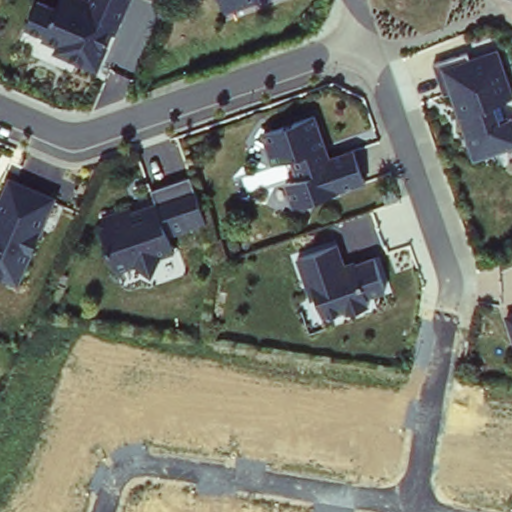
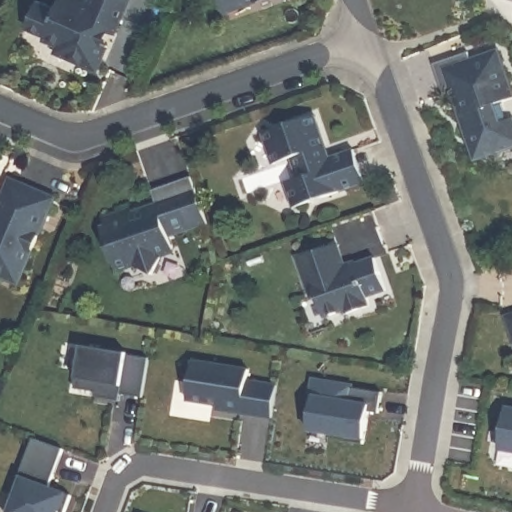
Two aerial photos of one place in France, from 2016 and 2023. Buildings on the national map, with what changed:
unchanged [(43,0),(56,6),(59,0),(130,0),(99,70),(54,51),(55,45),(39,37),(41,31),(26,24),(40,0),(43,0)]
unchanged [(260,0),(231,9),(229,0),(260,0)]
unchanged [(512,94),(512,96),(495,104),(503,124),(512,120),(512,143),(474,157),(439,66),(492,47),(512,94)]
unchanged [(320,117),(333,155),(354,146),(365,183),(292,211),(285,183),(297,179),(291,159),(270,162),(261,132),(320,117)]
unchanged [(155,201),(151,185),(189,176),(208,221),(171,235),(176,253),(117,272),(103,222),(155,201)]
unchanged [(10,177),(56,196),(19,283),(0,275),(0,198),(10,177)]
unchanged [(338,243),(351,264),(377,256),(390,293),(326,315),(321,300),(313,302),(296,255),(338,243)]
unchanged [(512,324),(509,312),(512,312),(512,324)]
new [(81,345),(127,352),(126,353),(148,357),(142,397),(119,393),(119,395),(74,387),(81,345)]
new [(193,360),(248,369),(246,380),(276,385),(271,417),(223,410),(223,405),(186,400),(193,360)]
new [(312,401),(309,401),(312,378),(352,385),(351,387),(381,392),(378,412),(368,411),(362,443),(345,440),(345,435),(307,429),(312,401)]
new [(119,395),(118,400),(93,396),(94,391),(119,395)]
new [(506,407),(512,408),(512,451),(498,448),(506,407)]
new [(64,451),(51,480),(73,490),(64,512),(10,512),(17,498),(6,492),(31,438),(64,451)]

